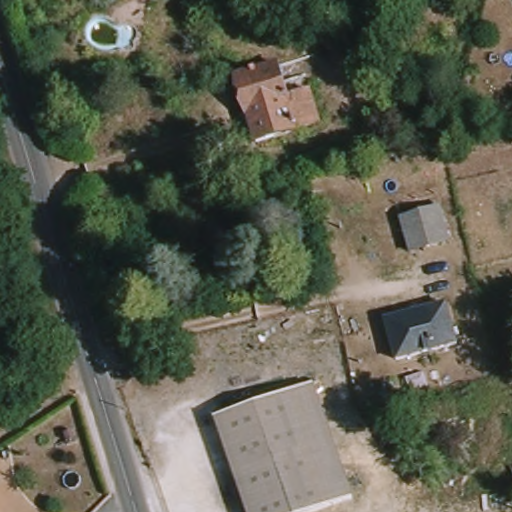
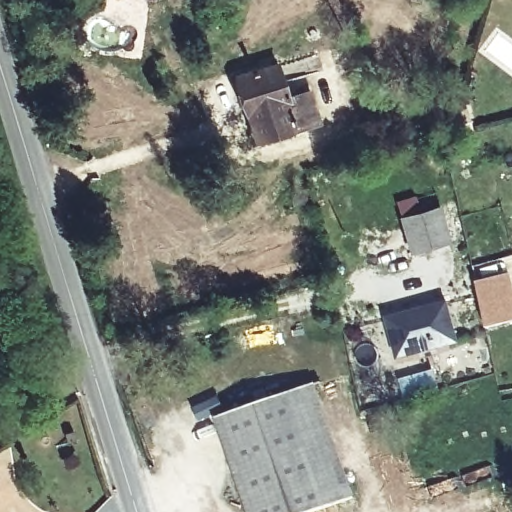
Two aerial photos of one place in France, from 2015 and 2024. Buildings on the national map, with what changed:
unchanged [(118,2),(119,0),(148,0),(146,8),(118,2)]
unchanged [(279,70),(288,98),(308,93),(318,125),(298,132),(262,144),(255,146),(235,82),(240,80),(279,70)]
unchanged [(395,223),(439,211),(445,231),(449,243),(405,256),(395,223)]
new [(510,274),(512,282),(512,321),(488,329),(478,283),(510,274)]
unchanged [(457,336),(396,352),(387,317),(447,302),(457,336)]
unchanged [(292,394),(313,385),(355,499),(335,507),(292,394)]
unchanged [(248,512),(215,423),(292,394),(335,507),(321,512),(248,512)]

